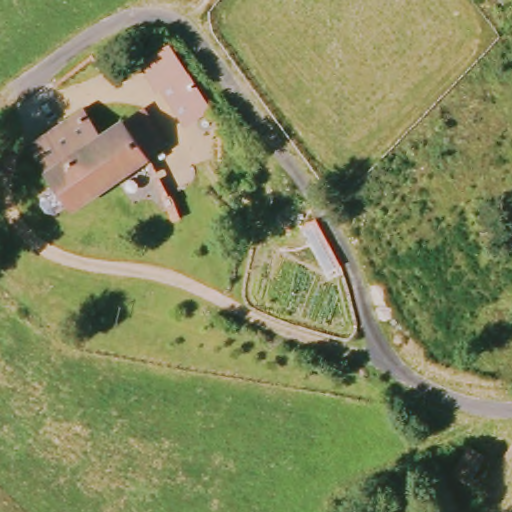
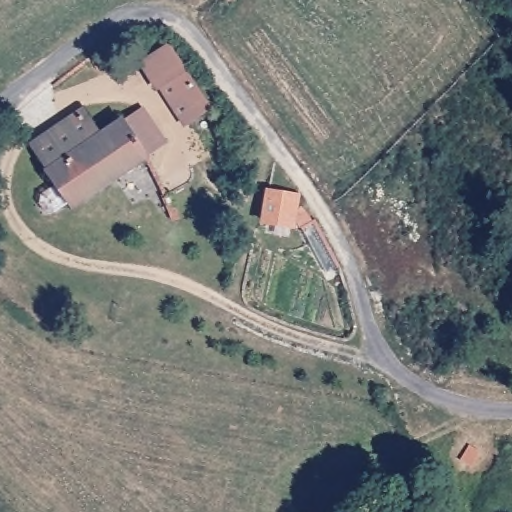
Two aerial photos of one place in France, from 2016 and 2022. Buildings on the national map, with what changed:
unchanged [(169,45),(212,114),(184,132),(145,67),(169,45)]
unchanged [(73,210),(47,173),(52,170),(35,145),(84,113),(101,137),(123,122),(142,110),(163,140),(145,154),(150,160),(73,210)]
new [(266,189),(301,194),(295,230),(260,224),(266,189)]
unchanged [(487,463),(471,486),(456,476),(472,453),(487,463)]

